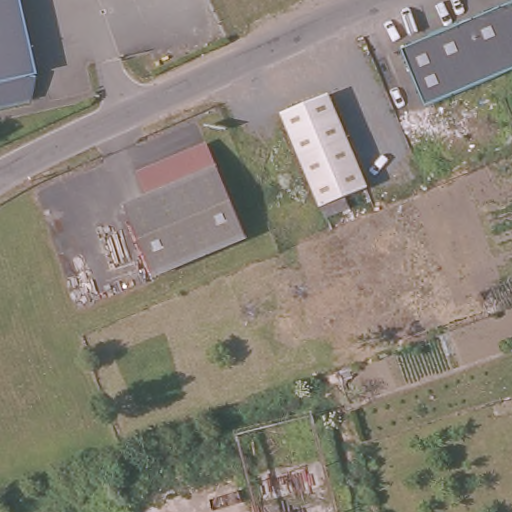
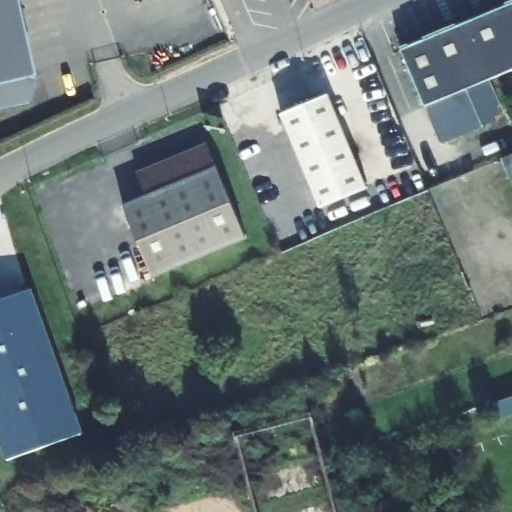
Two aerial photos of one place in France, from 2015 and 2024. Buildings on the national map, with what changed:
unchanged [(37,75),(33,98),(0,106),(0,0),(13,0),(30,74),(37,75)]
unchanged [(512,5),(512,71),(466,90),(485,127),(445,144),(425,106),(403,49),(512,5)]
unchanged [(328,93),(358,167),(366,187),(320,206),(312,186),(281,112),(328,93)]
unchanged [(238,217),(245,235),(151,273),(145,257),(123,203),(147,194),(137,171),(207,142),(238,217)]
new [(88,429),(13,457),(0,420),(0,298),(36,285),(88,429)]

